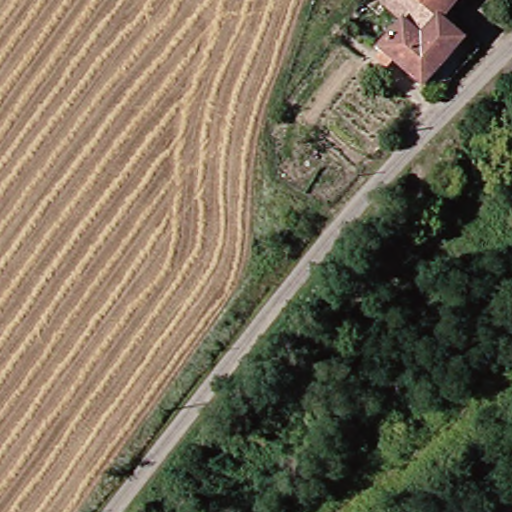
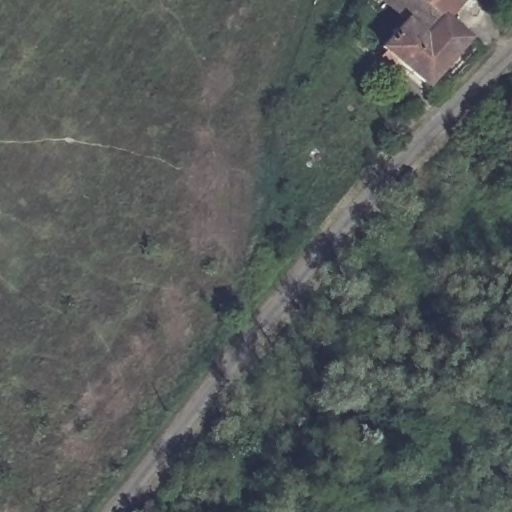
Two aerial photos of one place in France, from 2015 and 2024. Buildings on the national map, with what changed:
unchanged [(466,36),(429,84),(385,48),(405,21),(381,0),(424,0),(447,21),(466,36)]
unchanged [(424,0),(464,0),(447,21),(424,0)]

